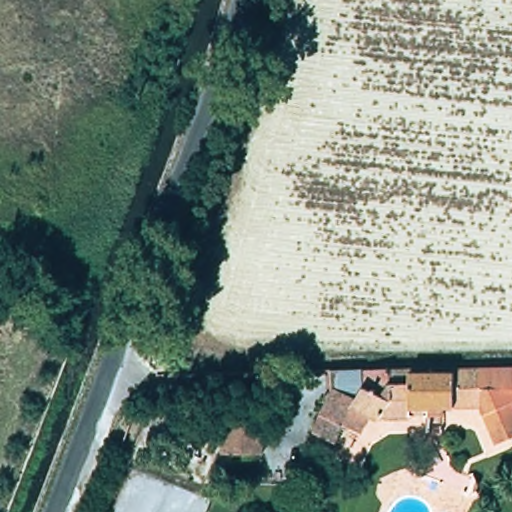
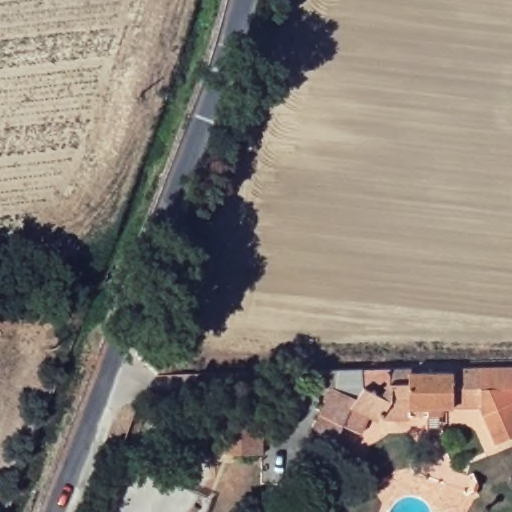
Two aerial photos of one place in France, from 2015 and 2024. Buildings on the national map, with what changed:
unchanged [(512,405),(512,437),(495,445),(494,442),(481,415),(479,404),(422,407),(422,420),(394,420),(389,421),(383,420),(370,416),(361,432),(361,433),(344,425),(335,441),(314,430),(324,406),(332,390),(356,398),(362,389),(378,392),(377,382),(375,375),(418,374),(419,379),(464,377),(463,373),(501,369),(512,368),(512,403),(511,403),(512,405)]

